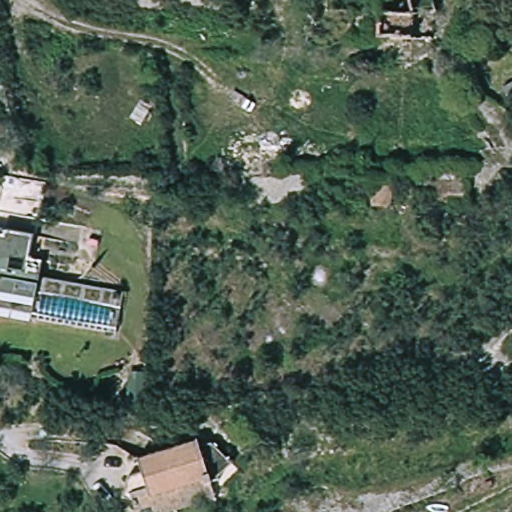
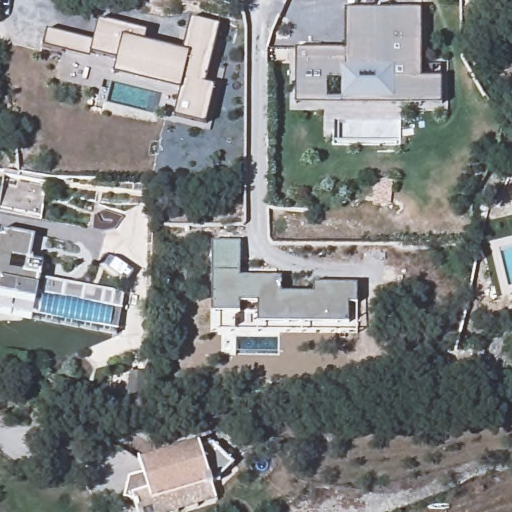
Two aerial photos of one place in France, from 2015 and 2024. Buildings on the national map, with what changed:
new [(343,49),(344,8),(422,9),(421,78),(442,79),(441,105),(295,104),(294,49),(343,49)]
new [(93,40),(98,20),(147,31),(144,41),(182,51),(190,17),(219,25),(204,84),(213,85),(204,124),(173,116),(179,90),(113,74),(117,60),(91,53),(90,58),(42,46),(45,29),(93,40)]
unchanged [(9,133),(0,140),(0,123),(9,133)]
new [(11,180),(54,186),(48,221),(5,215),(11,180)]
unchanged [(395,182),(394,209),(372,207),(374,181),(395,182)]
demolished [(421,183),(469,185),(468,210),(420,207),(421,183)]
unchanged [(8,233),(9,227),(36,232),(33,257),(46,259),(43,276),(41,283),(1,276),(0,276),(0,232),(8,233)]
new [(239,271),(240,276),(281,277),(281,292),(312,293),(312,282),(357,283),(356,302),(347,302),(347,322),(256,322),(257,302),(239,302),(239,311),(211,311),(210,271),(239,271)]
unchanged [(41,283),(43,276),(126,290),(119,329),(0,309),(0,279),(1,276),(41,283)]
unchanged [(148,491),(139,463),(199,445),(201,452),(213,448),(233,468),(219,482),(220,485),(212,488),(217,504),(190,512),(140,512),(135,495),(148,491)]

